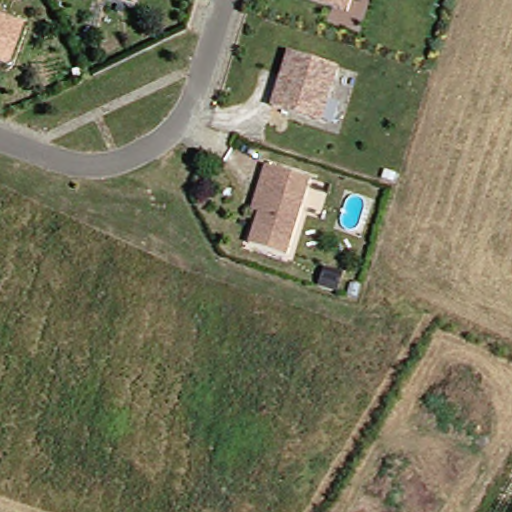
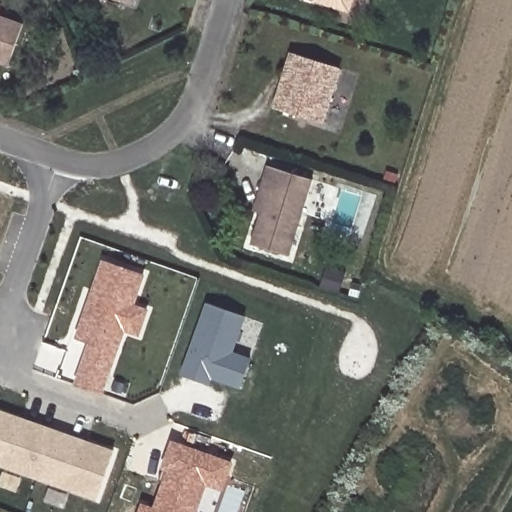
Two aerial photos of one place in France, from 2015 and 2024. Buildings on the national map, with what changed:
unchanged [(119,0),(134,0),(133,5),(119,0)]
unchanged [(309,0),(353,0),(349,13),(309,0)]
unchanged [(8,66),(0,64),(0,16),(23,25),(8,66)]
unchanged [(292,53),(339,68),(322,123),(274,108),(292,53)]
unchanged [(289,257),(250,245),(263,206),(258,196),(267,166),(313,180),(289,257)]
unchanged [(387,171),(398,175),(396,183),(384,179),(387,171)]
new [(89,343),(75,338),(101,261),(146,274),(136,304),(149,309),(140,336),(125,332),(104,394),(75,384),(89,343)]
new [(207,303),(247,317),(234,352),(252,358),(241,388),(213,378),(209,385),(182,375),(207,303)]
new [(98,501),(0,464),(0,409),(114,450),(98,501)]
new [(143,503),(154,506),(166,472),(162,470),(173,440),(234,462),(224,492),(207,485),(198,512),(139,512),(143,503)]

